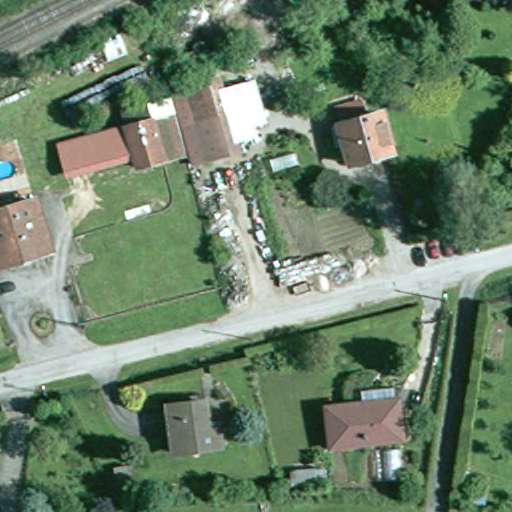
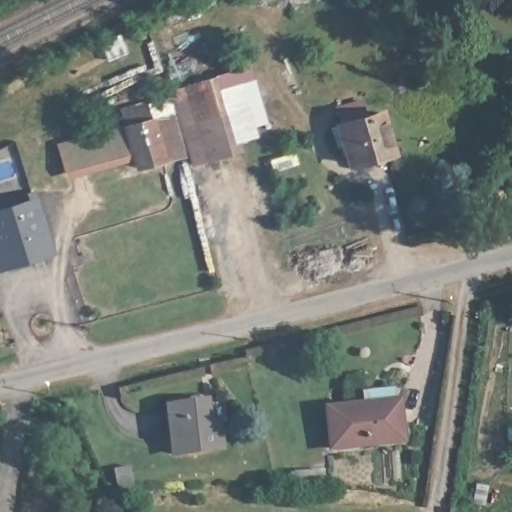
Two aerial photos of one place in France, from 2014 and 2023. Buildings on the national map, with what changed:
unchanged [(186,167),(184,157),(174,116),(168,92),(217,80),(222,100),(224,100),(238,96),(248,155),(238,156),(236,157),(186,167)]
unchanged [(388,154),(347,164),(343,145),(333,147),(328,128),(338,125),(378,115),(388,154)]
unchanged [(148,122),(174,116),(184,157),(158,164),(148,122)]
unchanged [(148,122),(158,164),(129,171),(126,157),(120,130),(148,122)]
unchanged [(54,140),(120,130),(126,157),(58,169),(54,140)]
unchanged [(31,209),(43,256),(0,267),(0,217),(31,209)]
unchanged [(328,450),(326,415),(361,414),(360,400),(394,397),(394,412),(397,446),(328,450)]
unchanged [(191,400),(196,431),(207,429),(211,450),(167,458),(156,407),(191,400)]
unchanged [(334,475),(334,490),(303,489),(302,473),(334,475)]
unchanged [(148,498),(132,501),(131,495),(128,480),(145,478),(148,495),(148,498)]

